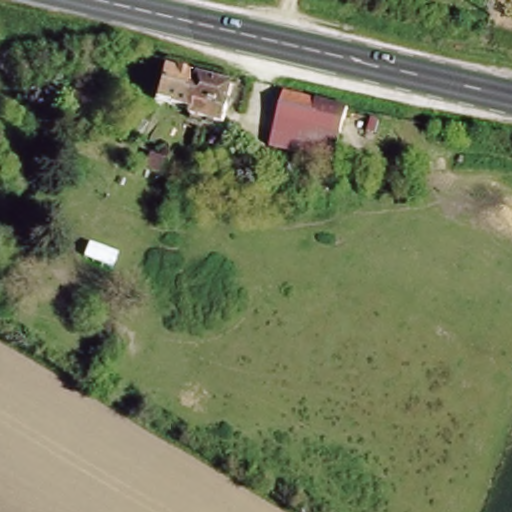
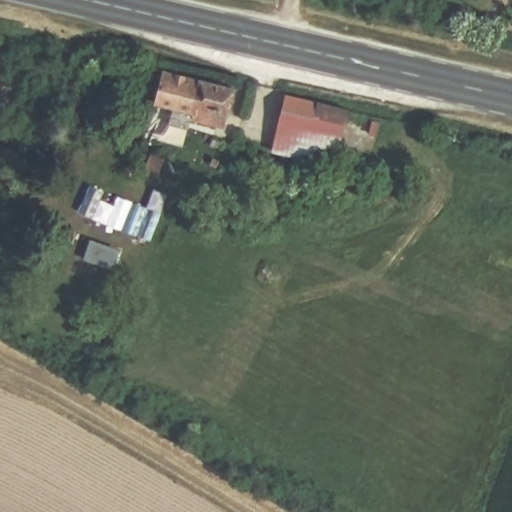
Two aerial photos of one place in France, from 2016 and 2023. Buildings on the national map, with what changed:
unchanged [(236,86),(226,122),(173,109),(176,102),(156,97),(164,67),(236,86)]
unchanged [(285,94),(344,106),(331,166),(272,150),(285,94)]
unchanged [(418,162),(450,175),(439,204),(407,191),(418,162)]

